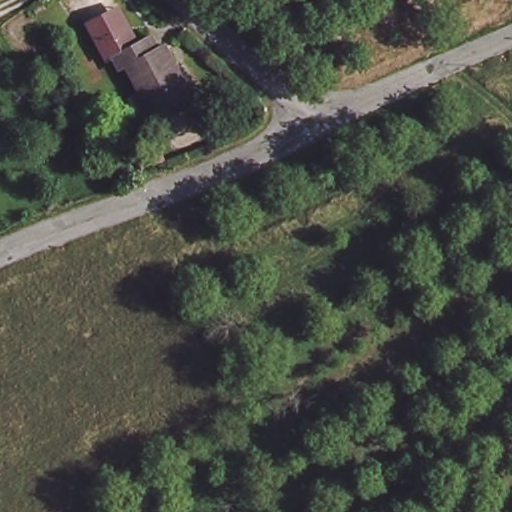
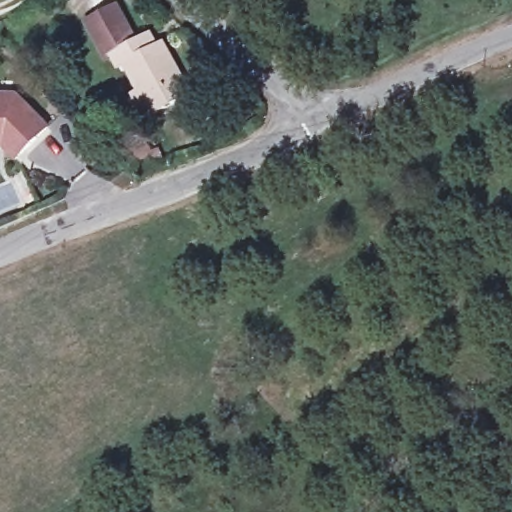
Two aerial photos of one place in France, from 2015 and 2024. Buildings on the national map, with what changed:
unchanged [(103,55),(85,19),(115,5),(132,40),(112,50),(103,55)]
unchanged [(129,90),(138,85),(125,60),(118,63),(112,50),(132,40),(147,33),(153,45),(159,42),(184,91),(150,108),(141,112),(129,90)]
new [(4,149),(0,149),(0,94),(19,94),(51,127),(15,162),(4,149)]

